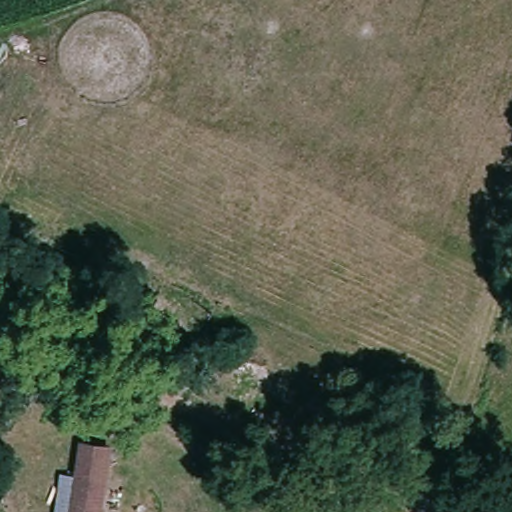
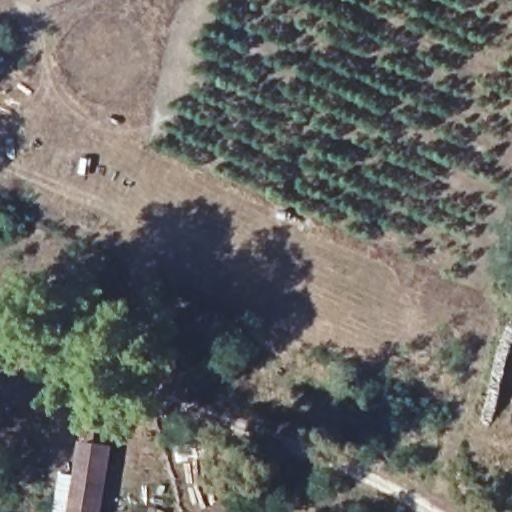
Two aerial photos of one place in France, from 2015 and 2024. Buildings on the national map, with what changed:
unchanged [(81,442),(114,446),(106,512),(72,512),(81,442)]

